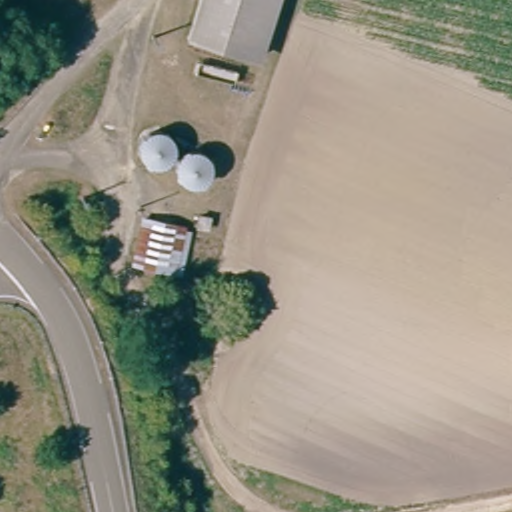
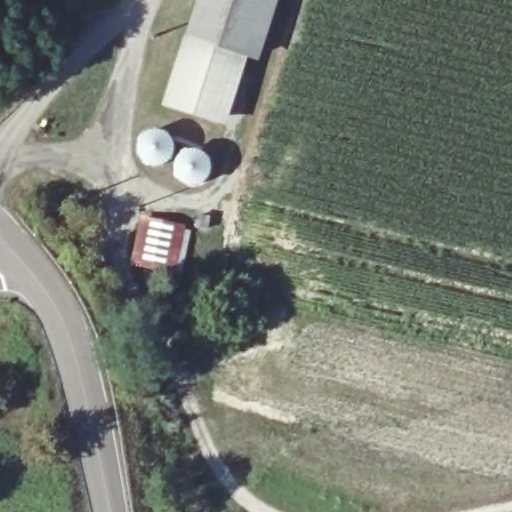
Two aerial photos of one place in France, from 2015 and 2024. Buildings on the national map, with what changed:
unchanged [(191,33),(201,0),(274,0),(256,57),(191,33)]
new [(248,54),(227,126),(162,105),(191,33),(248,54)]
unchanged [(174,164),(173,166),(172,167),(171,168),(169,170),(168,171),(166,172),(165,172),(164,173),(160,174),(159,174),(157,174),(154,174),(153,174),(151,174),(148,172),(147,172),(145,171),(144,170),(143,169),(142,169),(141,167),(140,166),(139,164),(138,162),(137,159),(137,147),(139,145),(140,144),(140,142),(142,141),(143,140),(144,139),(146,137),(148,137),(151,136),(152,136),(153,135),(156,135),(157,135),(160,135),(161,136),(163,136),(164,137),(167,138),(167,139),(170,140),(171,141),(172,143),(174,145),(174,146),(175,147),(176,150),(176,151),(176,154),(176,156),(176,159),(176,160),(175,162),(175,163),(174,164)]
unchanged [(213,183),(212,185),(211,186),(210,187),(209,188),(207,189),(206,190),(203,191),(201,191),(199,192),(197,192),(195,192),(194,191),(193,191),(192,191),(190,190),(189,190),(187,188),(186,187),(185,187),(184,186),(182,184),(182,183),(181,181),(180,180),(179,178),(179,177),(179,176),(178,174),(178,172),(179,171),(179,169),(179,167),(180,166),(180,164),(181,163),(181,162),(182,160),(184,159),(185,159),(186,157),(187,156),(189,156),(190,155),(191,155),(192,154),(193,154),(196,154),(197,154),(198,154),(199,154),(200,154),(202,154),(204,155),(205,155),(206,156),(207,156),(209,157),(210,159),(211,159),(212,161),(214,163),(215,164),(215,166),(216,167),(216,169),(216,172),(217,174),(216,175),(216,177),(215,179),(215,180),(215,181),(213,183)]
unchanged [(150,220),(187,230),(177,275),(163,271),(137,265),(146,232),(150,220)]

